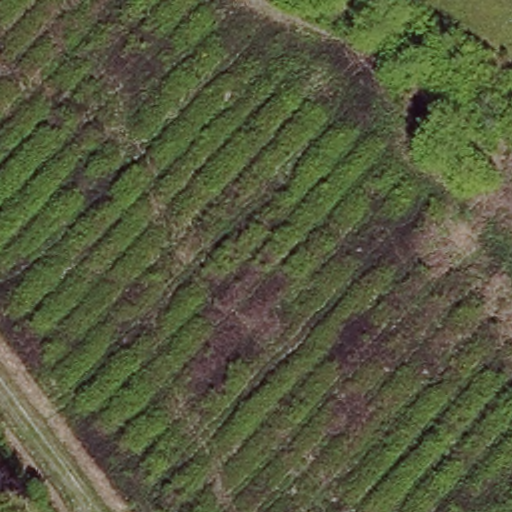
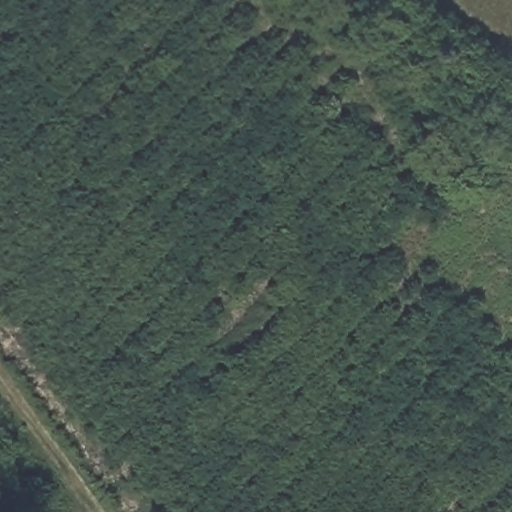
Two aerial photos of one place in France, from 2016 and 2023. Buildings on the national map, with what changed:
[]

